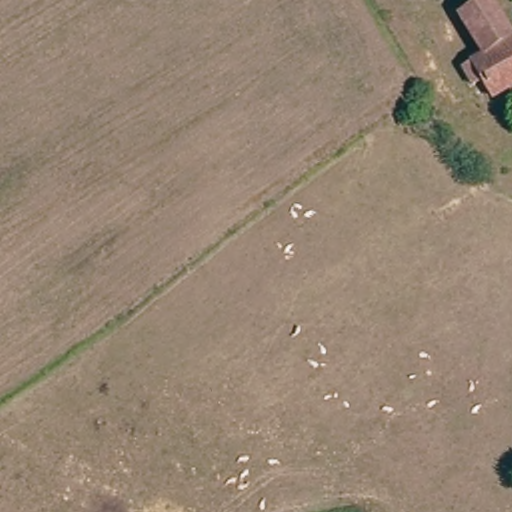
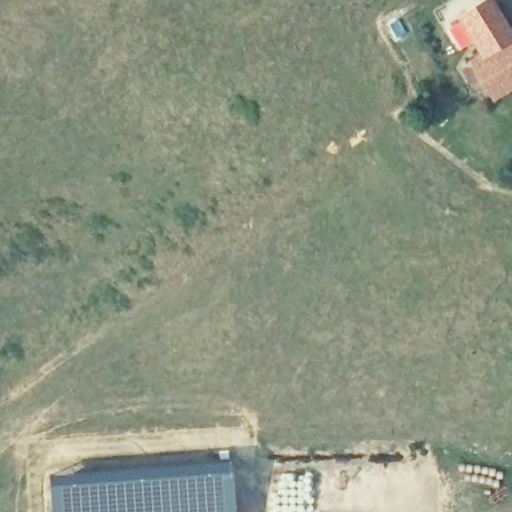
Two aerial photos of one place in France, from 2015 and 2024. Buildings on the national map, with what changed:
unchanged [(512,35),(512,87),(495,97),(485,80),(475,86),(462,67),(482,53),(460,17),(486,0),(491,0),(512,35)]
new [(79,477),(126,475),(209,468),(232,467),(236,512),(50,512),(47,479),(71,477),(79,477)]

